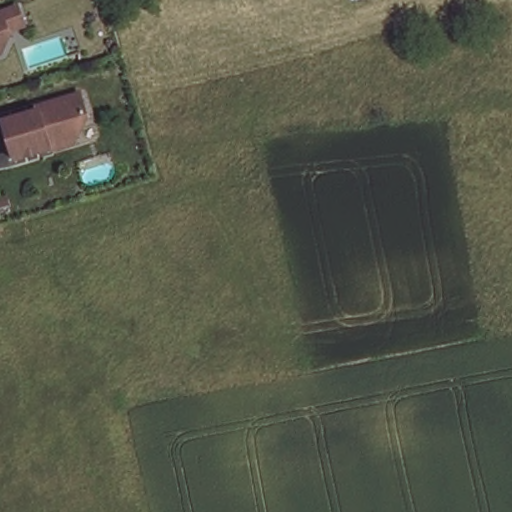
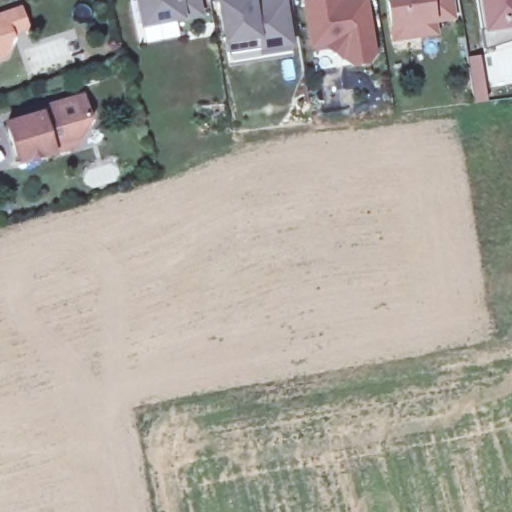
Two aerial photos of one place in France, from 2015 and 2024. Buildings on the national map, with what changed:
new [(143,25),(138,0),(198,0),(201,14),(143,25)]
new [(273,0),(286,0),(292,42),(260,46),(259,36),(226,40),(219,1),(216,1),(216,0),(254,0),(254,3),(273,0)]
new [(371,64),(351,66),(323,46),(309,50),(302,0),(369,0),(377,54),(371,64)]
new [(434,19),(437,33),(393,38),(388,0),(451,0),(454,16),(434,19)]
new [(481,29),(487,28),(483,0),(512,0),(512,39),(484,49),(481,29)]
unchanged [(20,8),(26,26),(10,32),(12,37),(4,54),(0,55),(0,15),(3,14),(20,8)]
unchanged [(44,103),(80,91),(84,103),(93,109),(95,115),(85,133),(57,141),(58,146),(23,156),(11,118),(45,108),(44,103)]

